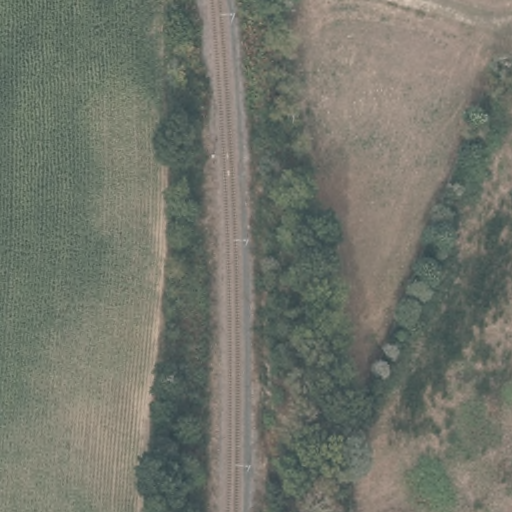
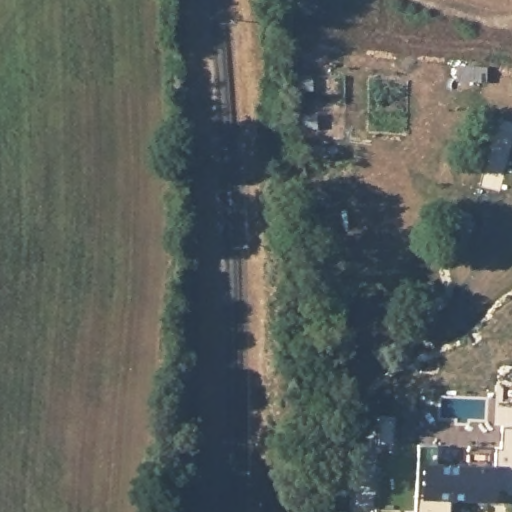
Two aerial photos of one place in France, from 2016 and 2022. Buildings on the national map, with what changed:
new [(415,510),(418,444),(435,444),(435,461),(496,463),(495,447),(501,447),(502,427),(512,427),(512,495),(496,494),(495,501),(450,499),(449,512),(375,512),(375,509),(415,510)]

